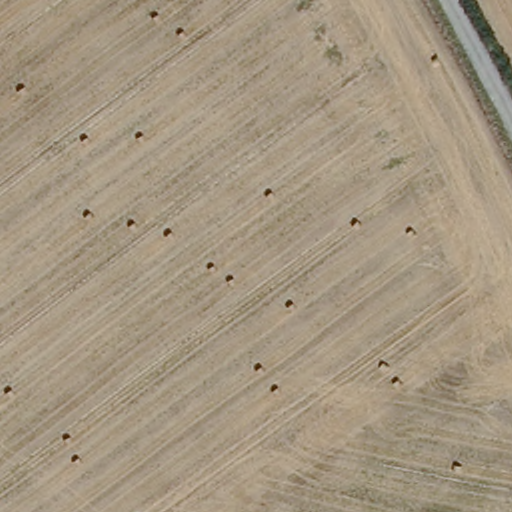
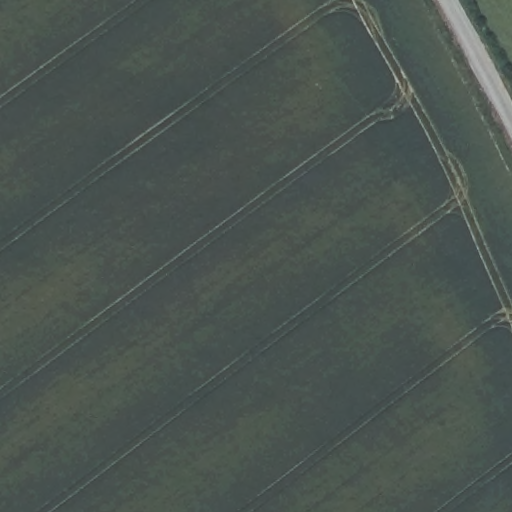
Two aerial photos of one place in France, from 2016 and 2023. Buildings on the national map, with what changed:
[]

